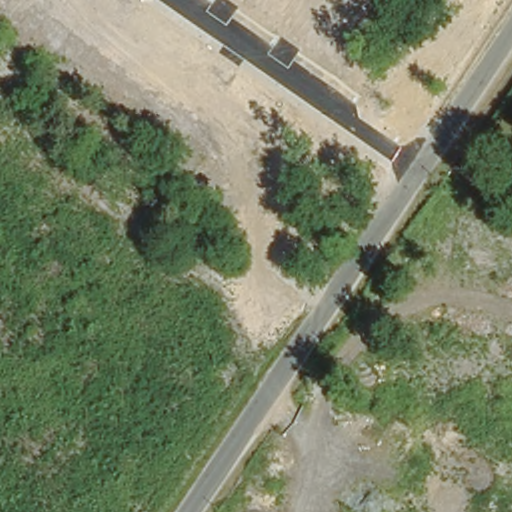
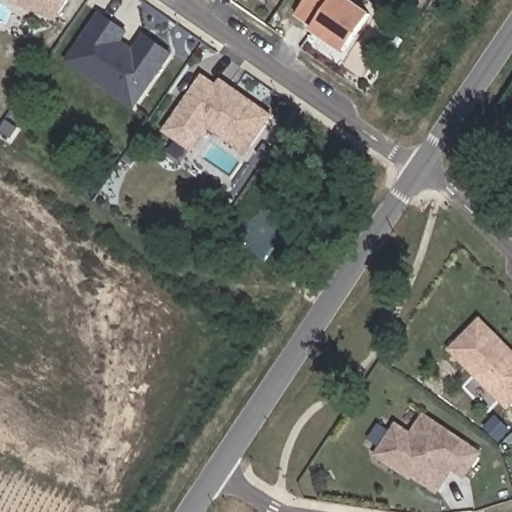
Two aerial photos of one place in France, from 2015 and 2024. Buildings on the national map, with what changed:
new [(13,3),(14,0),(71,0),(57,20),(13,3)]
new [(264,0),(267,0),(266,1),(264,0)]
new [(354,0),(372,13),(345,51),(312,29),(295,14),(305,0),(354,0)]
new [(134,110),(65,63),(99,11),(129,33),(123,42),(133,49),(144,33),(175,54),(134,110)]
new [(274,116),(247,154),(208,129),(193,153),(163,130),(202,74),(216,84),(221,78),(274,116)]
new [(447,349),(479,317),(512,349),(512,405),(507,409),(447,349)]
new [(465,479),(453,471),(438,494),(412,476),(409,479),(375,454),(397,422),(411,432),(424,413),(484,452),(465,479)]

